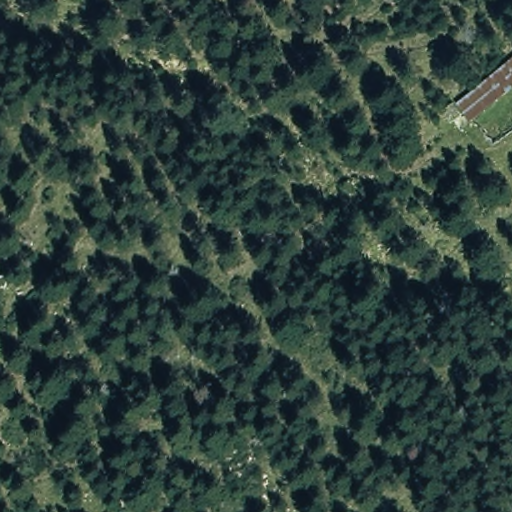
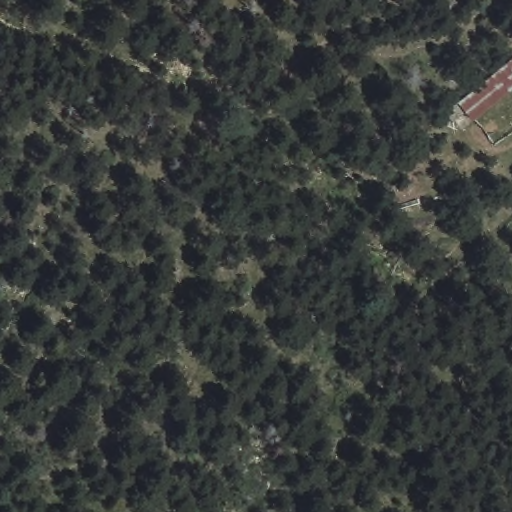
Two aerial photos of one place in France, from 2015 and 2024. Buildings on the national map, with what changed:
unchanged [(512,61),(512,94),(475,124),(459,104),(512,61)]

